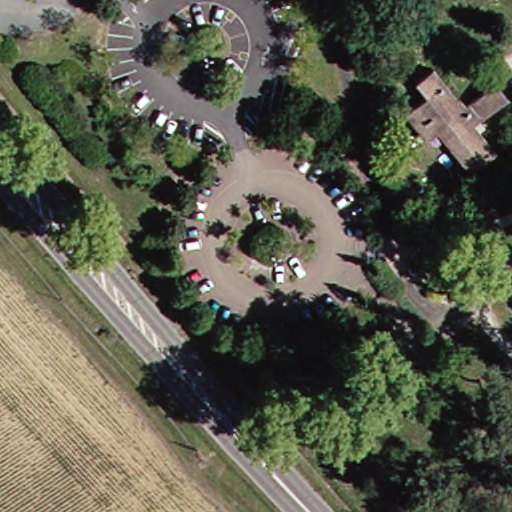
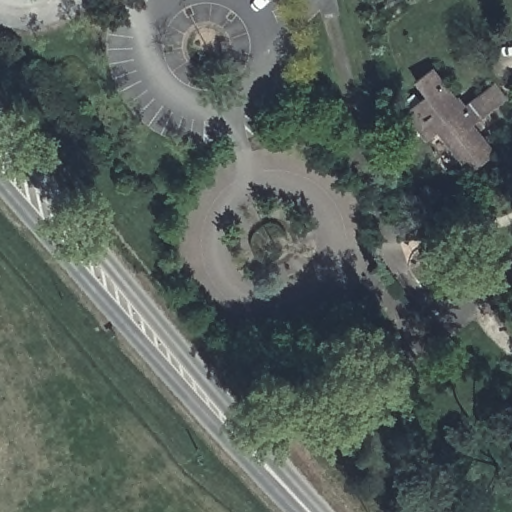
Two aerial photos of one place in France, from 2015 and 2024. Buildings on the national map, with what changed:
unchanged [(424,127),(412,112),(432,95),(422,83),(438,69),(469,107),(500,81),(512,96),(512,99),(478,126),(500,152),(478,170),(442,127),(432,136),(424,127)]

